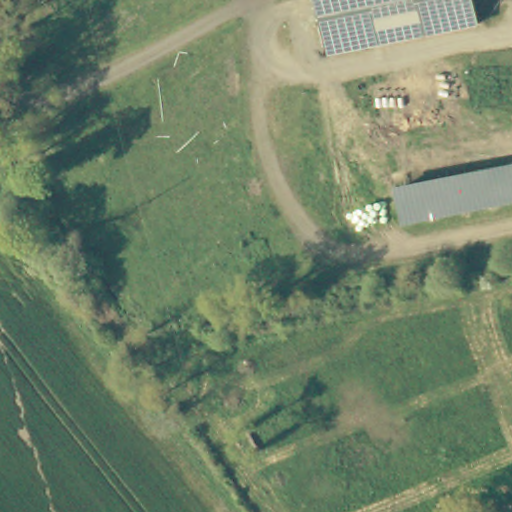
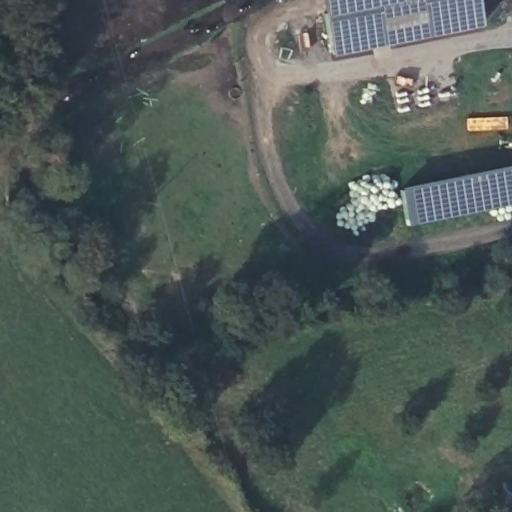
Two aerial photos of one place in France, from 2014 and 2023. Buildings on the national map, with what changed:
unchanged [(318,0),(392,0),(344,9),(352,49),(328,54),(318,0)]
unchanged [(392,0),(470,0),(476,26),(352,49),(344,9),(392,0)]
unchanged [(512,165),(512,204),(406,225),(399,188),(512,165)]

